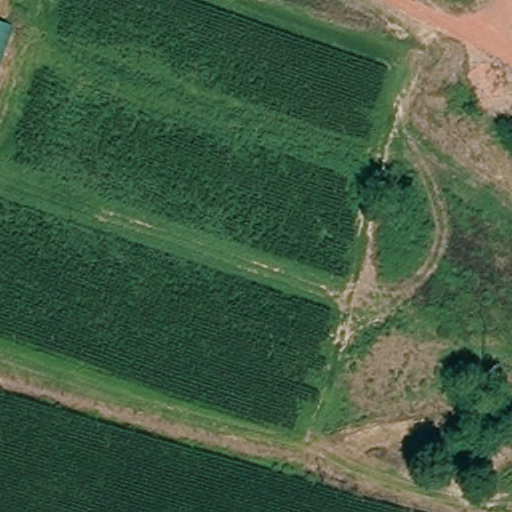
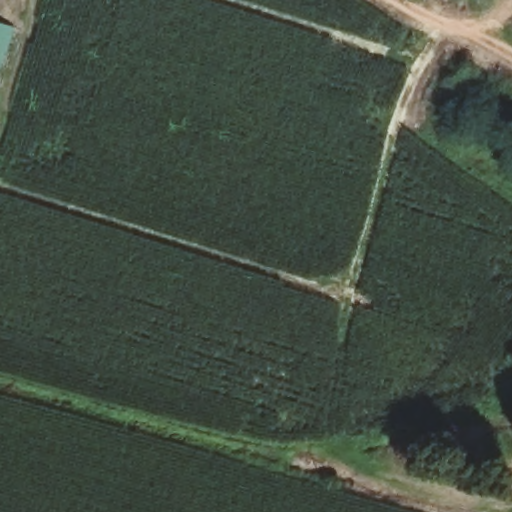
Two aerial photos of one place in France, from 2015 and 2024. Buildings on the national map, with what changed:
unchanged [(8,28),(0,55),(0,25),(8,28)]

